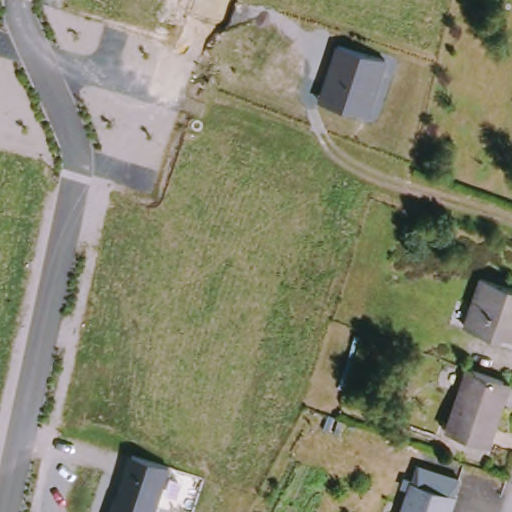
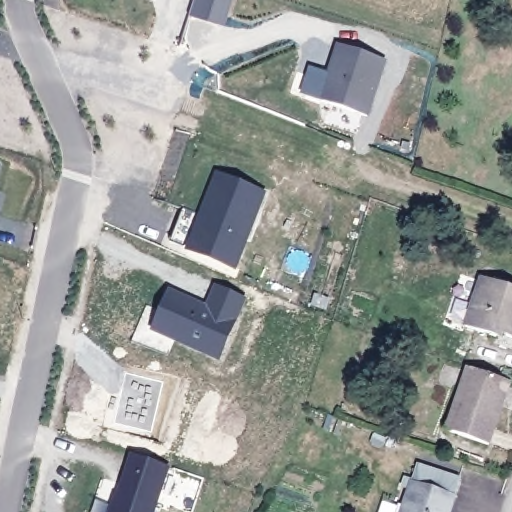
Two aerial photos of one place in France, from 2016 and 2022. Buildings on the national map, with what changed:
new [(231,0),(224,25),(191,15),(195,0),(231,0)]
unchanged [(386,61),(369,117),(318,101),(335,47),(386,61)]
new [(200,215),(216,173),(267,193),(238,271),(186,252),(189,247),(172,241),(183,209),(200,215)]
unchanged [(501,335),(499,341),(469,330),(485,277),(512,287),(512,338),(501,335)]
new [(249,299),(222,362),(153,332),(170,288),(207,305),(215,285),(249,299)]
unchanged [(494,450),(451,432),(473,370),(512,384),(512,396),(494,450)]
unchanged [(171,467),(155,512),(110,512),(129,455),(171,467)]
unchanged [(414,489),(416,490),(422,473),(463,488),(457,505),(459,505),(457,512),(406,512),(414,489)]

